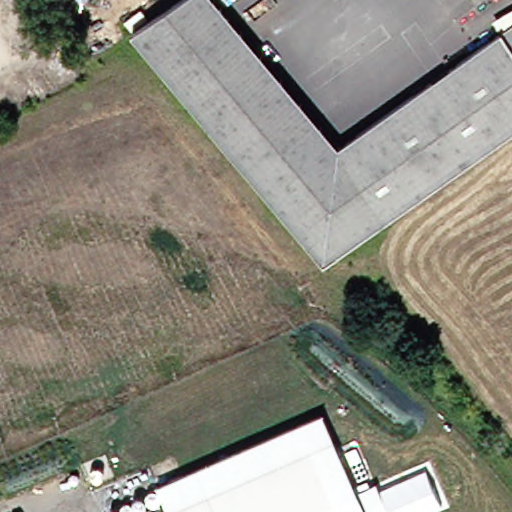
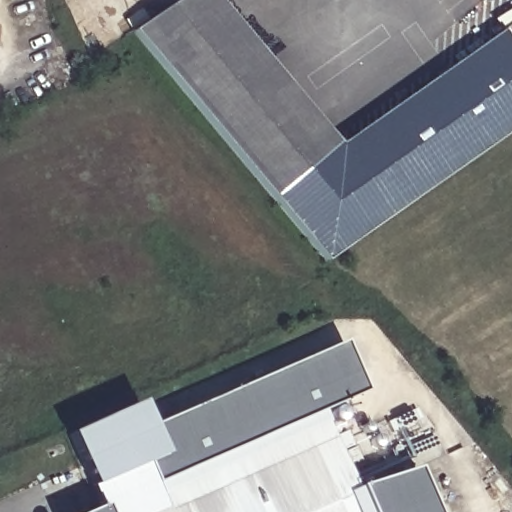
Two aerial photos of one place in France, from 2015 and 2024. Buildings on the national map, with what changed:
unchanged [(349,147),(404,214),(335,262),(172,67),(142,32),(189,0),(226,0),(349,147)]
unchanged [(159,19),(143,31),(136,21),(151,10),(159,19)]
unchanged [(404,214),(349,147),(512,31),(512,137),(404,214)]
new [(322,412),(157,486),(166,506),(152,512),(87,512),(99,507),(90,488),(68,433),(140,402),(150,423),(346,340),(367,391),(322,412)]
unchanged [(322,412),(359,493),(377,485),(388,512),(339,512),(309,445),(166,506),(157,486),(322,412)]
unchanged [(152,512),(166,506),(309,445),(339,512),(152,512)]
new [(388,512),(377,485),(417,468),(436,512),(388,512)]

